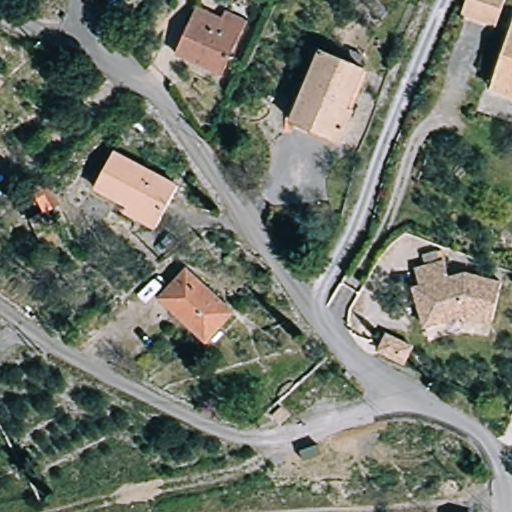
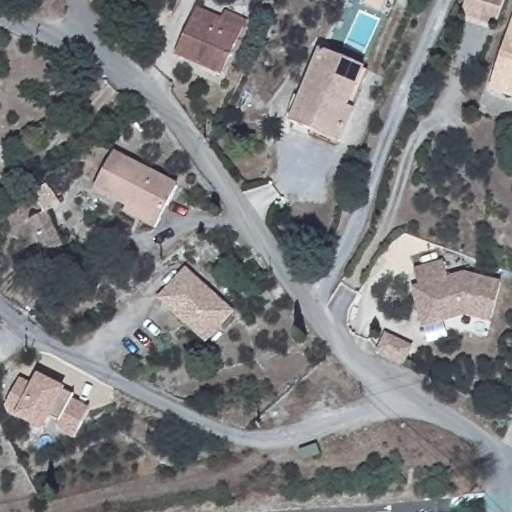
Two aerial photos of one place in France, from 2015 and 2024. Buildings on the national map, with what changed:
unchanged [(494,26),(460,13),(465,0),(504,0),(494,26)]
unchanged [(223,69),(178,49),(191,17),(218,29),(227,10),(246,18),(223,69)]
unchanged [(512,32),(512,76),(497,71),(512,32)]
unchanged [(286,122),(318,53),(325,56),(359,71),(343,111),(347,113),(333,143),(294,126),(286,122)]
unchanged [(491,88),(497,71),(512,76),(512,96),(491,88)]
unchanged [(176,186),(153,224),(102,195),(124,157),(176,186)]
unchanged [(25,226),(56,206),(76,238),(45,258),(25,226)]
unchanged [(463,279),(499,287),(491,327),(462,320),(424,334),(415,309),(420,305),(411,277),(441,268),(445,284),(463,279)]
unchanged [(185,274),(229,315),(205,342),(160,301),(185,274)]
new [(19,380),(32,387),(37,377),(73,396),(70,402),(88,411),(73,438),(60,431),(58,423),(58,422),(48,416),(41,429),(10,412),(8,402),(19,380)]
new [(313,442),(317,452),(300,458),(296,449),(313,442)]

